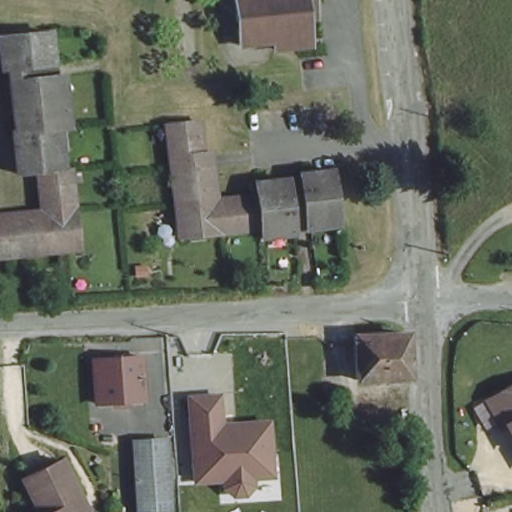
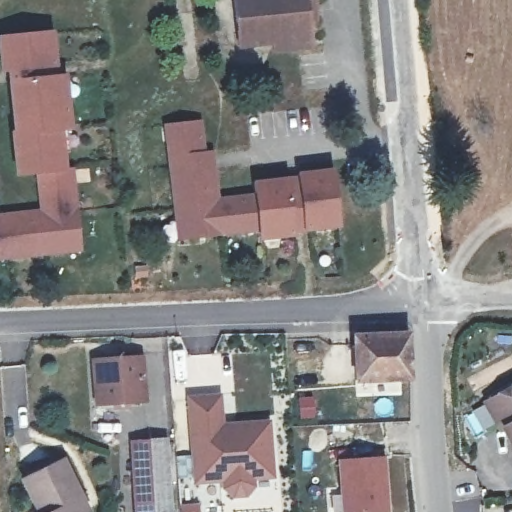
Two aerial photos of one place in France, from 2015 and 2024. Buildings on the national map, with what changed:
unchanged [(312,53),(275,55),(275,49),(240,50),(234,0),(318,0),(318,9),(320,27),(312,28),(312,53)]
unchanged [(35,179),(12,181),(10,142),(13,141),(10,75),(2,76),(0,50),(53,45),(57,86),(65,85),(67,137),(60,137),(62,176),(69,175),(75,256),(0,261),(0,220),(37,218),(35,179)]
unchanged [(212,152),(215,199),(257,197),(256,183),(300,180),(300,173),(332,171),(336,231),(290,233),(291,237),(259,238),(258,229),(177,233),(167,123),(199,122),(200,153),(212,152)]
unchanged [(408,381),(380,382),(378,338),(406,337),(408,381)]
unchanged [(378,338),(380,382),(355,382),(354,362),(353,339),(378,338)]
unchanged [(95,364),(140,360),(143,402),(98,406),(95,364)]
unchanged [(497,416),(485,395),(512,380),(512,434),(505,421),(500,423),(497,416)]
unchanged [(260,471),(248,472),(248,480),(240,489),(229,490),(220,482),(220,474),(191,476),(185,392),(215,390),(217,420),(252,417),(264,416),(265,428),(266,449),(267,470),(260,471)]
unchanged [(163,444),(169,512),(137,512),(132,446),(163,444)]
unchanged [(37,510),(30,498),(18,473),(28,468),(57,454),(75,493),(82,504),(72,509),(73,512),(34,512),(37,510)]
new [(385,458),(389,512),(342,512),(339,460),(385,458)]

